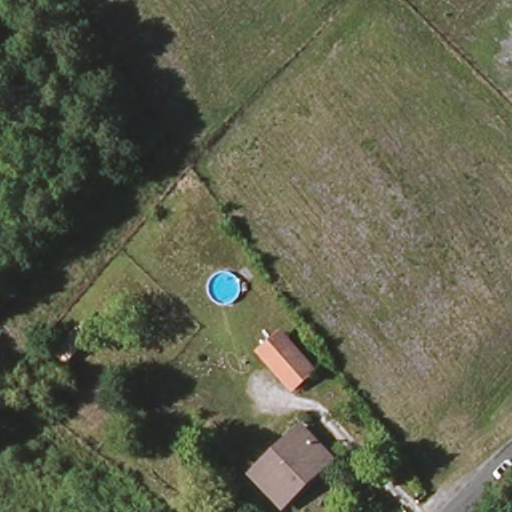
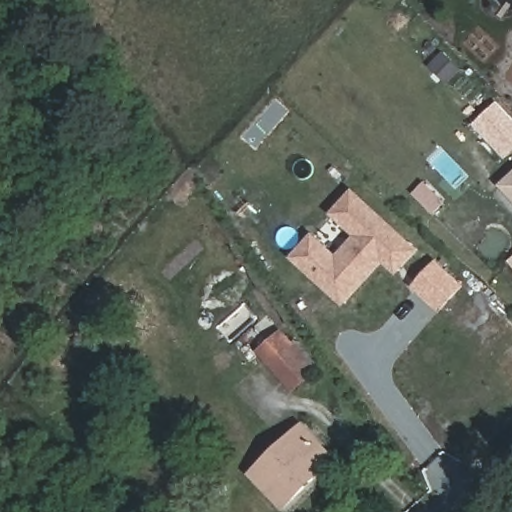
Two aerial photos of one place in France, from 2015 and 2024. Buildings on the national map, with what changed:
new [(443,50),(461,69),(447,82),(429,65),(443,50)]
new [(504,185),(512,177),(512,193),(504,185)]
new [(311,234),(335,257),(357,233),(333,211),(351,191),(414,248),(396,268),(382,256),(342,300),(293,255),(311,234)]
new [(467,286),(441,314),(413,288),(438,260),(467,286)]
unchanged [(264,348),(285,335),(293,345),(312,371),(290,387),(271,359),(264,348)]
unchanged [(254,475),(300,431),(326,457),(333,463),(314,480),(284,507),(254,475)]

